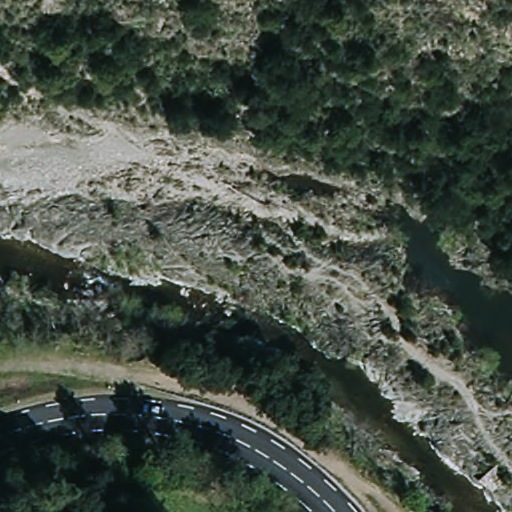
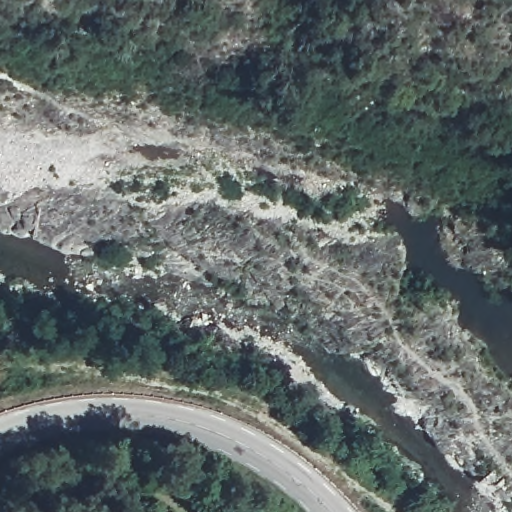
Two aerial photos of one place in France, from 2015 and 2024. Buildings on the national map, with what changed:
[]

